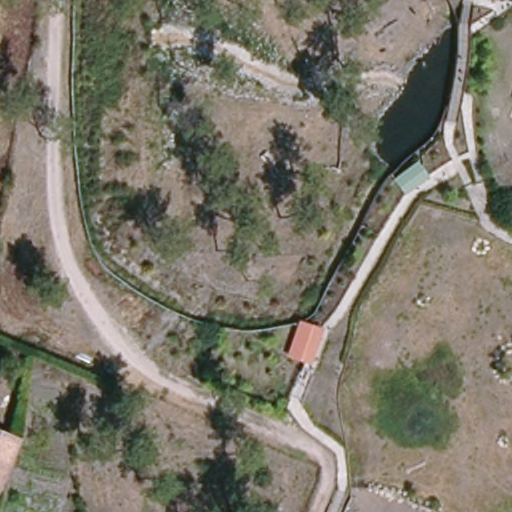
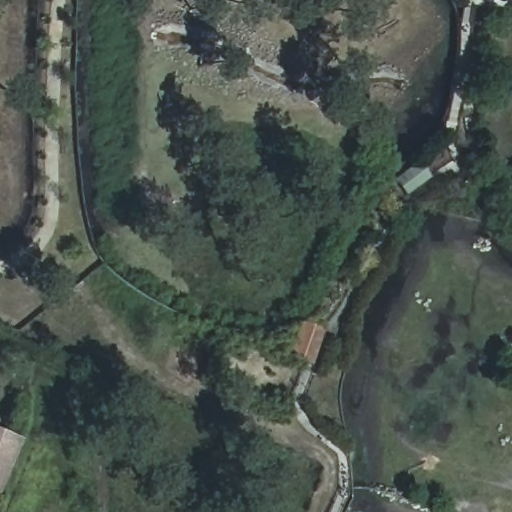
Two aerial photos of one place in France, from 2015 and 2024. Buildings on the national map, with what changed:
unchanged [(402,194),(391,180),(417,160),(427,177),(402,194)]
unchanged [(309,364),(284,355),(296,320),(321,329),(309,364)]
unchanged [(0,481),(0,431),(17,438),(0,481)]

